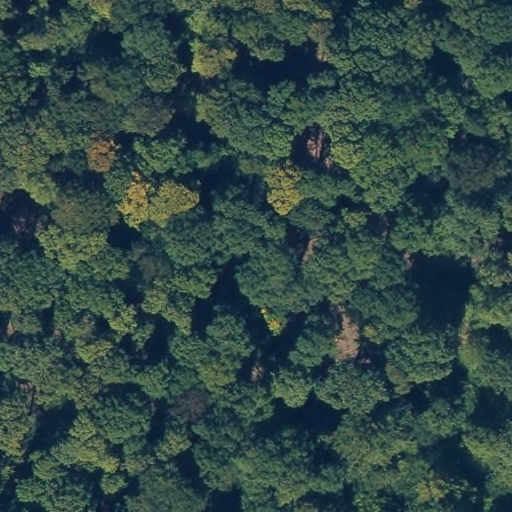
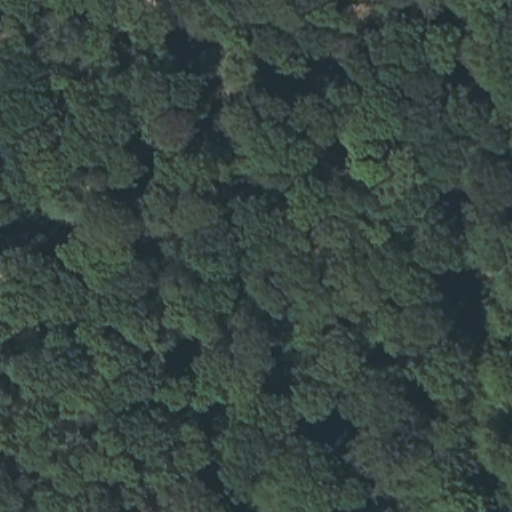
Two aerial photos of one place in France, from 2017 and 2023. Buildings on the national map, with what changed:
[]

